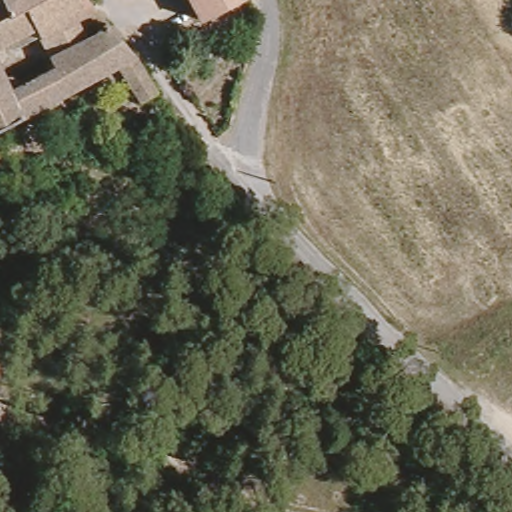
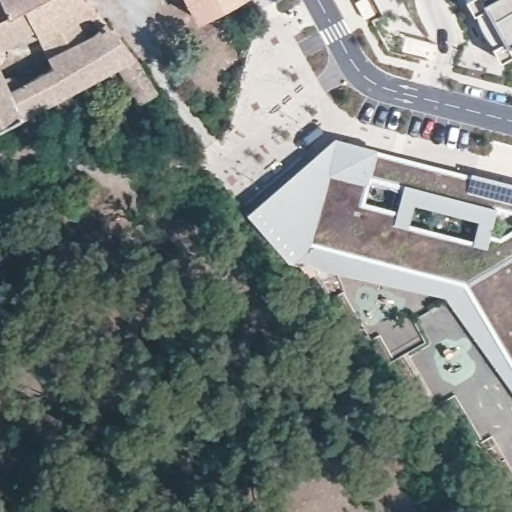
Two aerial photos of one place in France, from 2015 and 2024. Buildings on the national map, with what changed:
unchanged [(128,45),(143,62),(163,92),(167,99),(158,103),(150,108),(127,71),(91,90),(39,118),(31,122),(31,124),(0,141),(0,0),(90,0),(94,4),(106,18),(91,20),(81,26),(99,45),(105,42),(114,28),(128,45)]
unchanged [(223,10),(204,20),(192,0),(240,0),(223,10)]
new [(358,0),(368,0),(375,12),(365,18),(356,1),(358,0)]
new [(499,60),(464,0),(512,0),(512,52),(499,60)]
new [(335,137),(512,188),(512,212),(496,208),(492,234),(500,237),(512,230),(512,390),(446,298),(290,261),(247,212),(335,137)]

